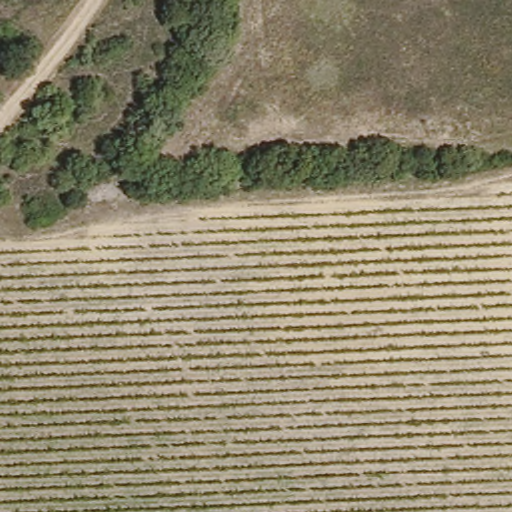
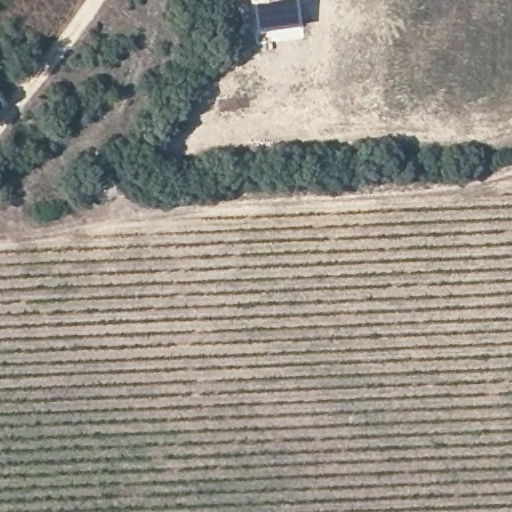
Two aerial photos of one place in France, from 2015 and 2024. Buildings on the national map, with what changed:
new [(301,25),(256,31),(251,0),(297,0),(301,25)]

